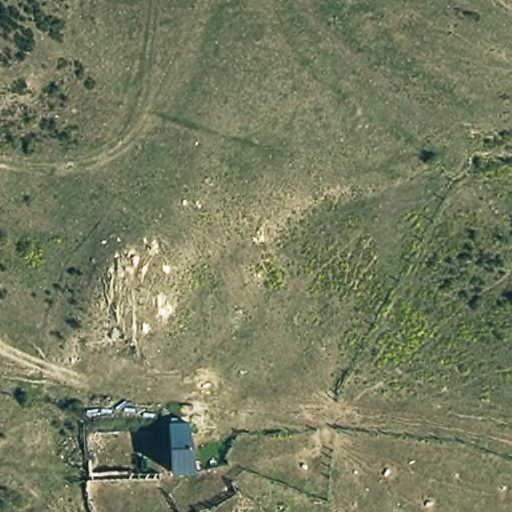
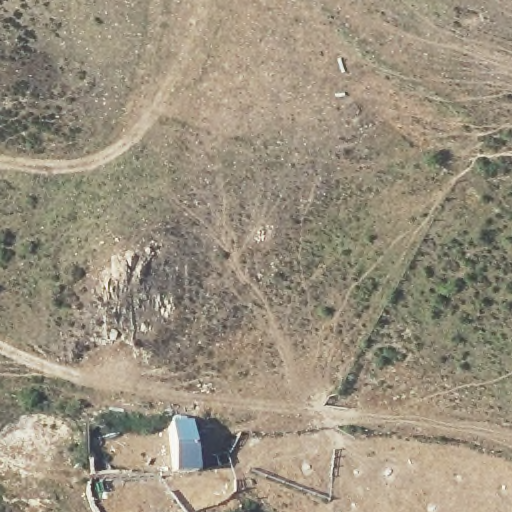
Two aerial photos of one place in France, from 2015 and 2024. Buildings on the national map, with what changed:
unchanged [(166,421),(192,419),(196,467),(170,473),(166,421)]

